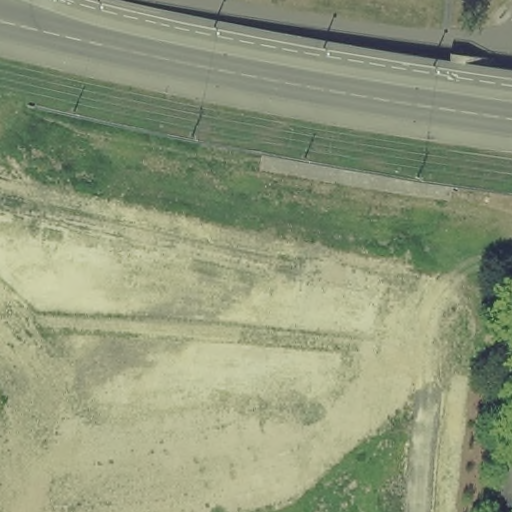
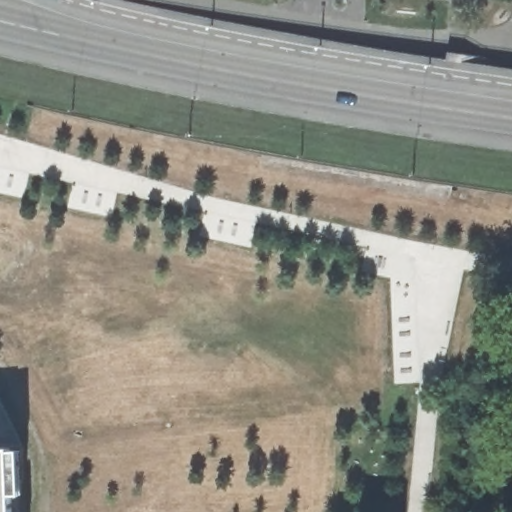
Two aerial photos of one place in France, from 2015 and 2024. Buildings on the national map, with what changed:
new [(26,512),(0,512),(0,448),(23,447),(26,512)]

